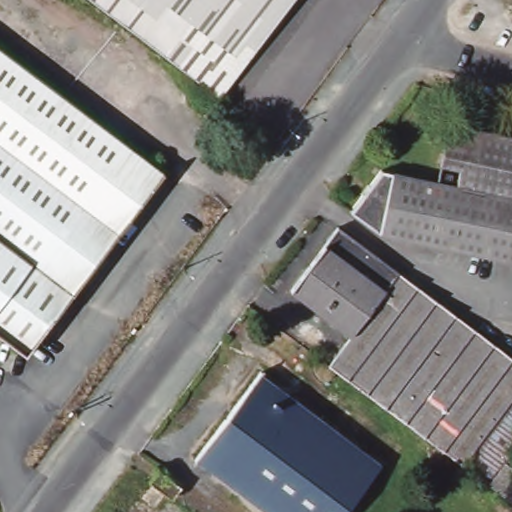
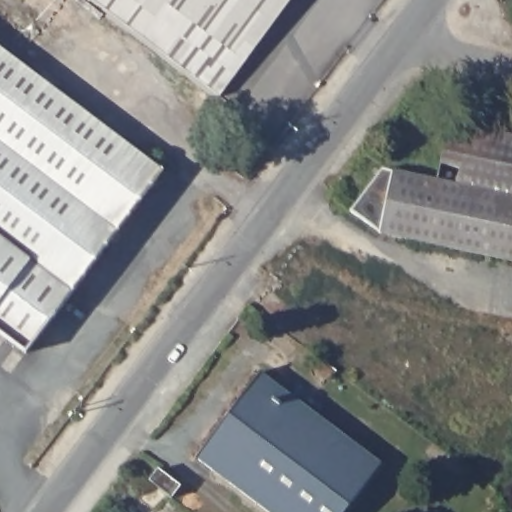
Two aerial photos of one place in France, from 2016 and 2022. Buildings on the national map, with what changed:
unchanged [(231,72),(215,94),(92,0),(277,0),(225,69),(231,72)]
unchanged [(290,0),(233,75),(231,72),(225,69),(277,0),(290,0)]
unchanged [(21,352),(0,337),(0,53),(158,172),(21,352)]
unchanged [(436,182),(449,123),(512,138),(512,263),(378,235),(347,211),(380,171),(436,182)]
demolished [(381,262),(384,262),(509,357),(512,360),(512,399),(460,467),(325,365),(347,335),(287,289),(334,227),(381,262)]
unchanged [(263,374),(385,466),(349,512),(269,512),(197,458),(263,374)]
demolished [(512,399),(512,443),(503,456),(512,464),(512,489),(503,500),(460,467),(512,399)]
unchanged [(163,468),(187,487),(178,498),(154,481),(163,468)]

